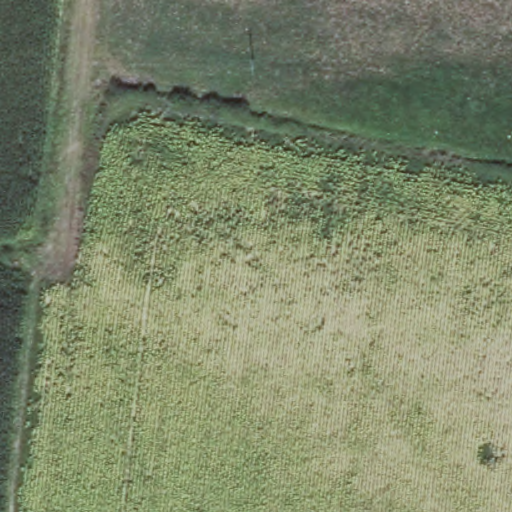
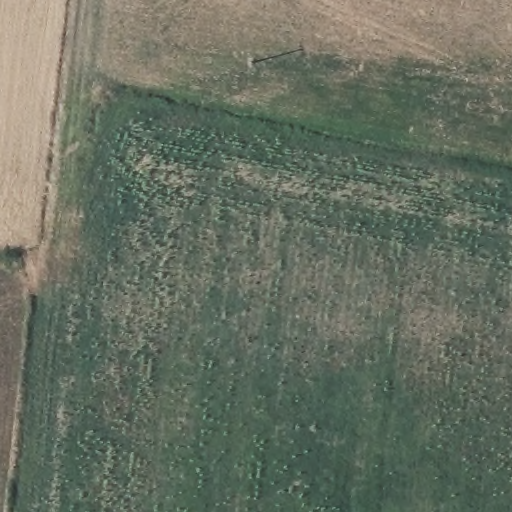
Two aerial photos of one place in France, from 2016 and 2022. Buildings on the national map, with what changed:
[]

